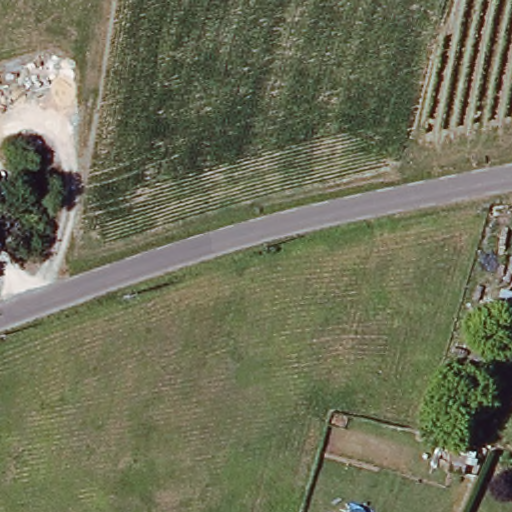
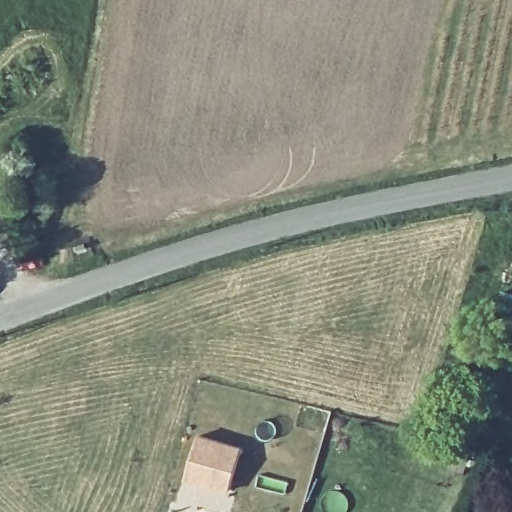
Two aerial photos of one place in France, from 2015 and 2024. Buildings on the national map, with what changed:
new [(187,478),(201,434),(243,446),(231,489),(187,478)]

